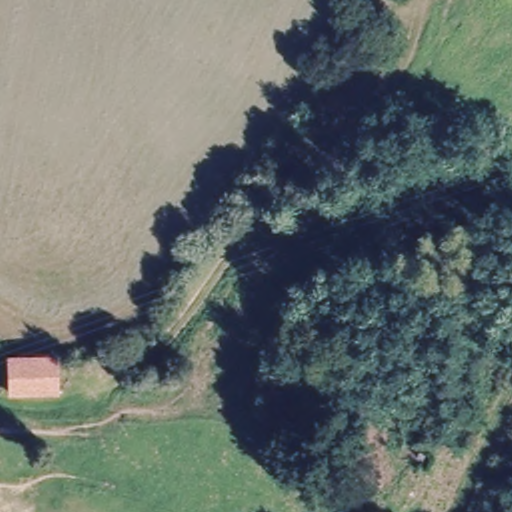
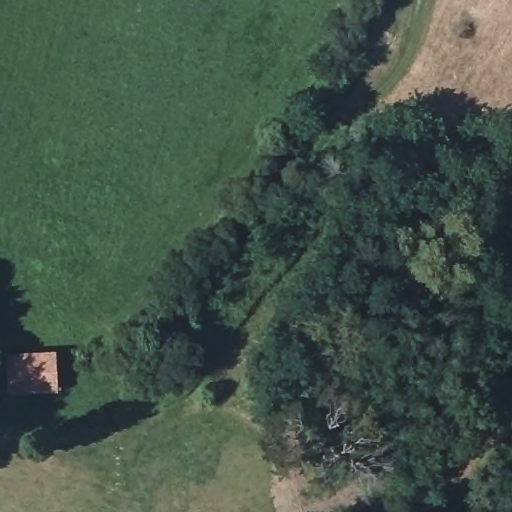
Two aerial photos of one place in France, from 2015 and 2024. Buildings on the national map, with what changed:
unchanged [(11,395),(11,379),(10,357),(52,356),(52,394),(11,395)]

